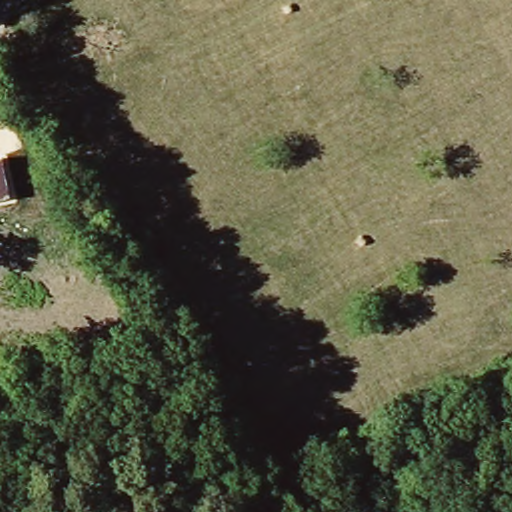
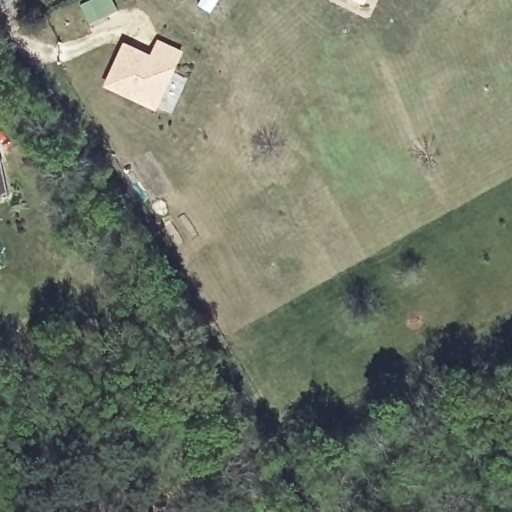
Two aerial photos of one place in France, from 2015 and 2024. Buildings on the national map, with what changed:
new [(198,0),(218,0),(210,14),(195,4),(198,0)]
new [(363,5),(353,0),(365,0),(363,5)]
new [(140,100),(107,85),(125,47),(152,59),(159,44),(179,53),(160,92),(154,106),(140,100)]
unchanged [(7,197),(0,198),(0,159),(7,197)]

